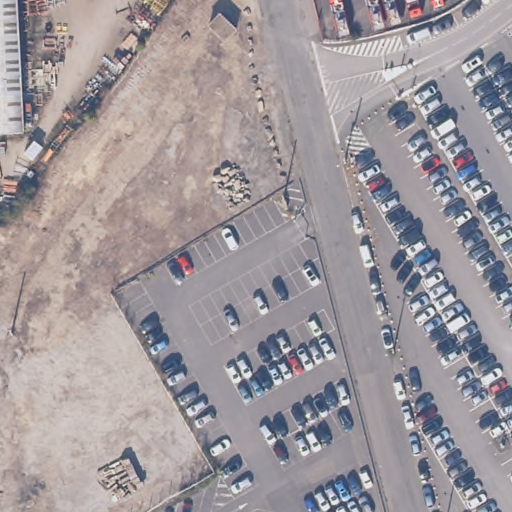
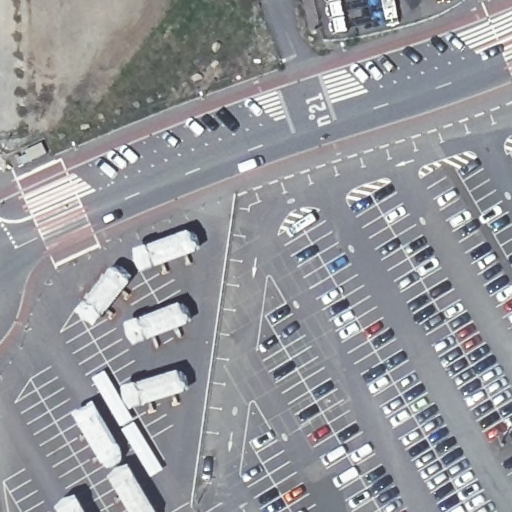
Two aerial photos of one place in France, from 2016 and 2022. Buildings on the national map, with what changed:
demolished [(22,0),(31,136),(0,140),(0,0),(22,0)]

